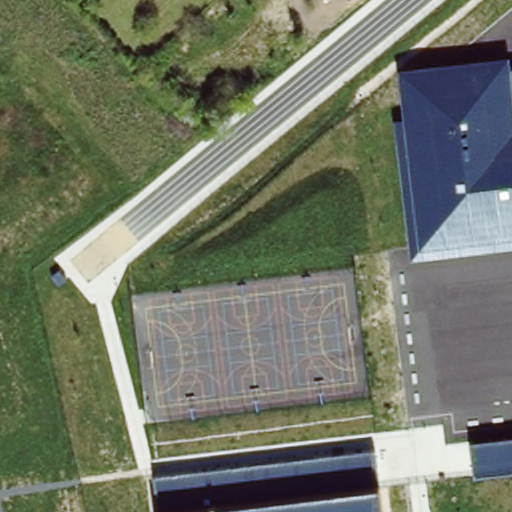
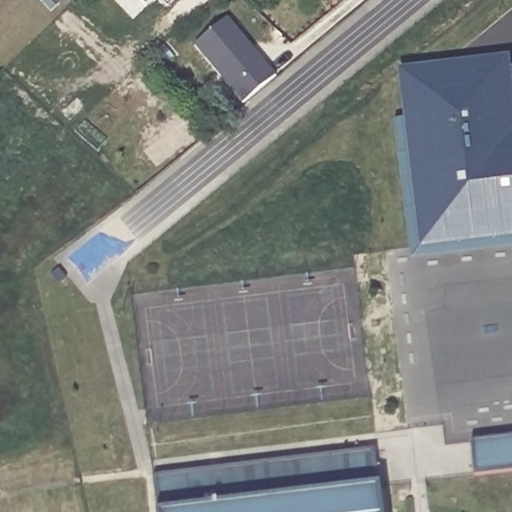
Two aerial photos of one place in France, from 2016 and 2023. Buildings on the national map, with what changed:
new [(140,0),(151,0),(145,6),(140,0)]
new [(157,0),(173,0),(166,6),(157,0)]
new [(228,16),(277,75),(242,103),(194,47),(228,16)]
unchanged [(395,119),(403,118),(399,68),(509,55),(510,66),(512,66),(512,246),(411,259),(395,119)]
new [(62,269),(68,277),(62,283),(55,275),(62,269)]
unchanged [(473,440),(512,436),(512,470),(476,473),(473,440)]
unchanged [(380,512),(158,512),(157,512),(153,475),(374,447),(377,484),(380,512)]

